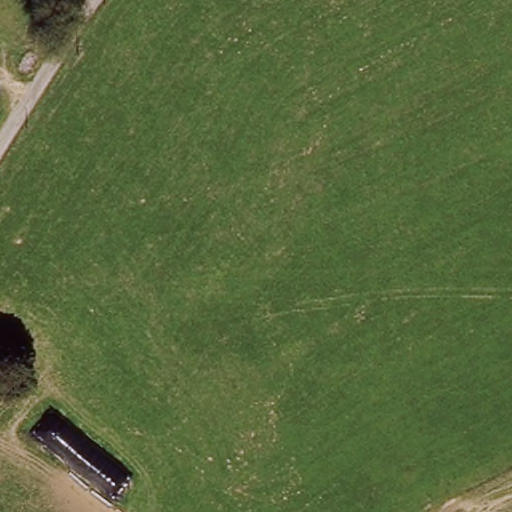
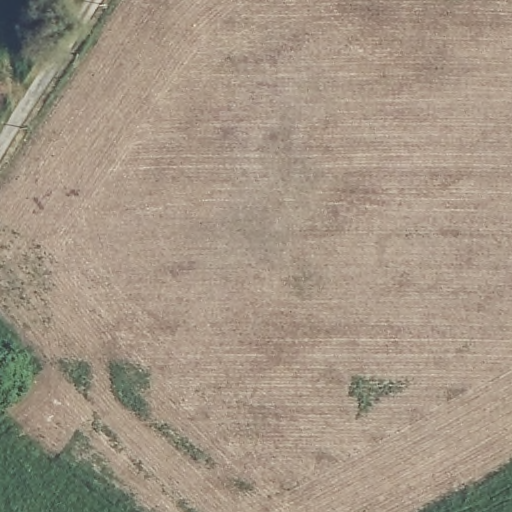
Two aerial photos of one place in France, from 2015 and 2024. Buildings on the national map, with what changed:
[]

